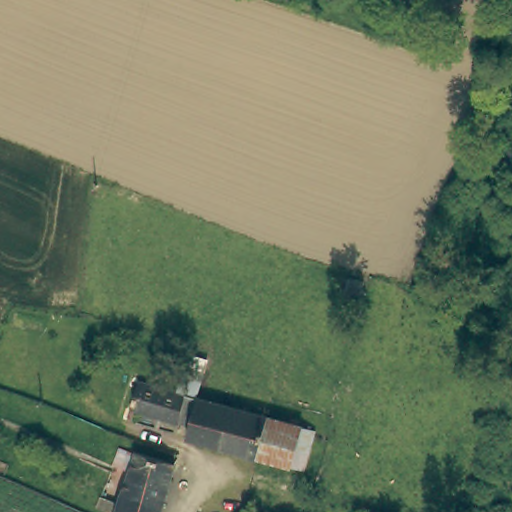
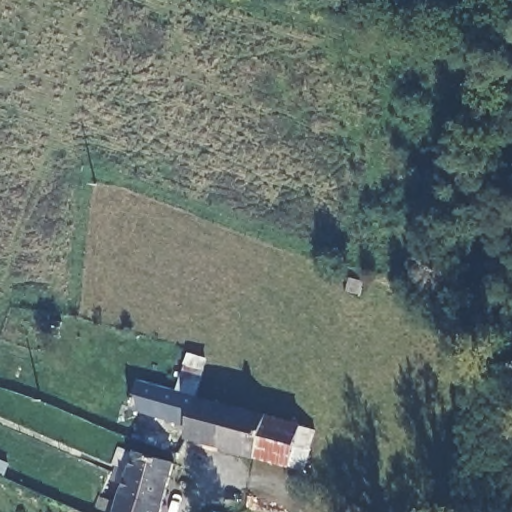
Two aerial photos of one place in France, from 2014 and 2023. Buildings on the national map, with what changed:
unchanged [(143,379),(182,390),(191,360),(194,351),(210,355),(207,365),(205,373),(199,394),(192,424),(135,404),(143,379)]
unchanged [(305,469),(254,453),(188,435),(192,424),(199,394),(266,415),(317,431),(305,469)]
unchanged [(166,512),(141,512),(125,505),(144,450),(182,463),(185,463),(166,512)]
unchanged [(122,512),(125,505),(141,512),(122,512)]

